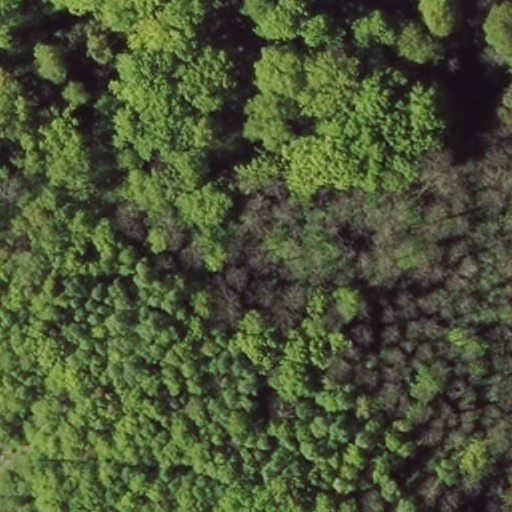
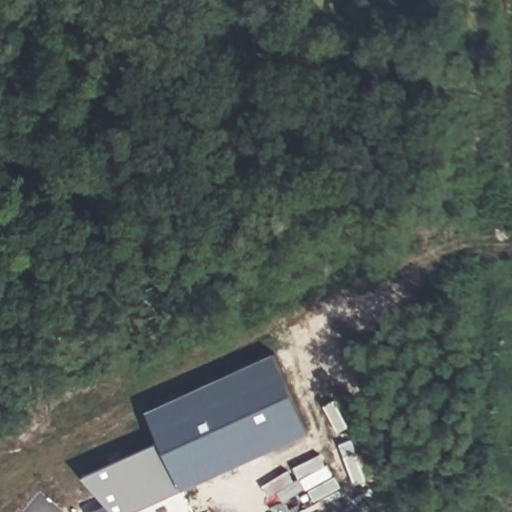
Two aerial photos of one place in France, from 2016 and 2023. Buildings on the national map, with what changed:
new [(128,511),(129,512),(88,512),(87,510),(106,503),(80,473),(159,438),(145,410),(272,351),(309,428),(183,487),(128,511)]

